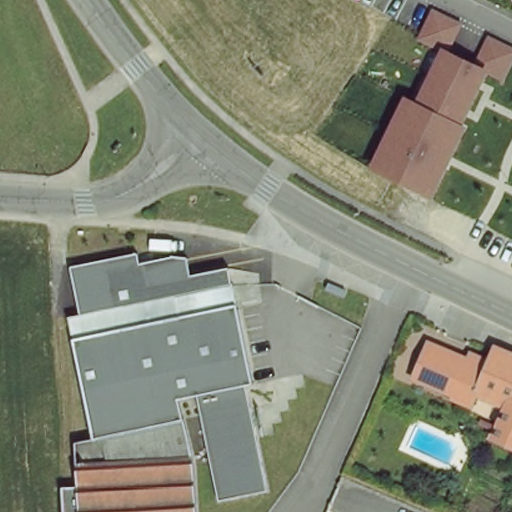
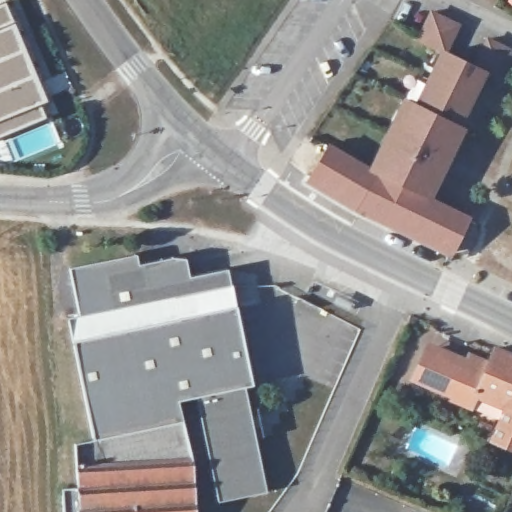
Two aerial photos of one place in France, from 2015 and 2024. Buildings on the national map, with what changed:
new [(0,6),(6,4),(38,87),(33,90),(46,122),(0,139),(0,6)]
unchanged [(415,40),(430,7),(461,25),(447,52),(470,63),(487,34),(512,46),(512,63),(504,82),(486,73),(429,200),(368,172),(402,98),(414,105),(439,49),(415,40)]
new [(368,172),(429,200),(431,196),(471,214),(451,257),(356,212),(306,181),(328,141),(370,166),(368,172)]
unchanged [(108,307),(101,270),(141,262),(146,284),(225,268),(228,283),(108,307)]
unchanged [(73,483),(70,440),(88,438),(82,405),(69,342),(63,316),(108,307),(228,283),(229,283),(241,342),(248,384),(241,386),(253,442),(263,491),(214,501),(191,395),(173,398),(188,459),(191,512),(59,512),(57,485),(73,483)]
unchanged [(494,443),(507,411),(476,400),(472,408),(409,382),(428,341),(443,347),(467,357),(469,352),(492,362),(499,348),(512,354),(512,452),(494,443)]

